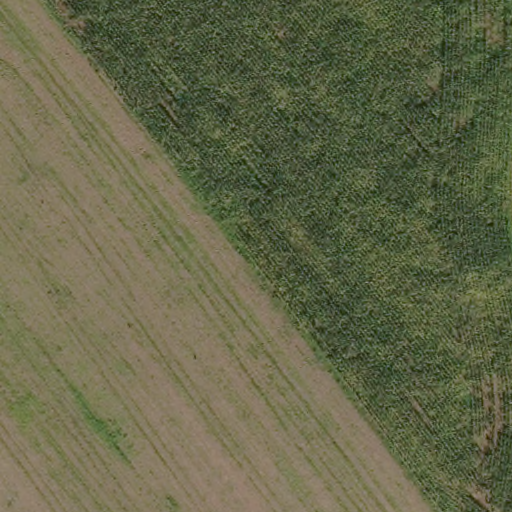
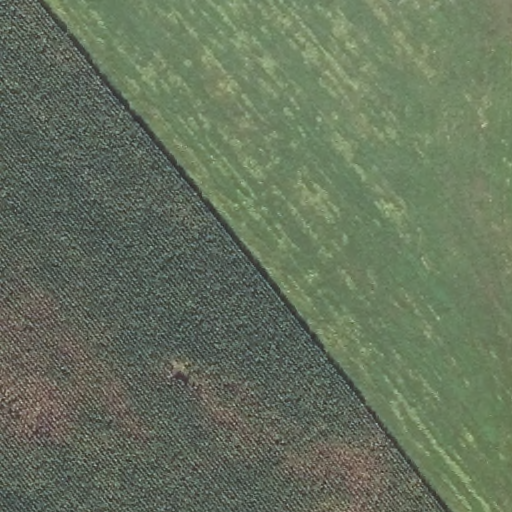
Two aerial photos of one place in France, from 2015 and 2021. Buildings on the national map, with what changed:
[]

